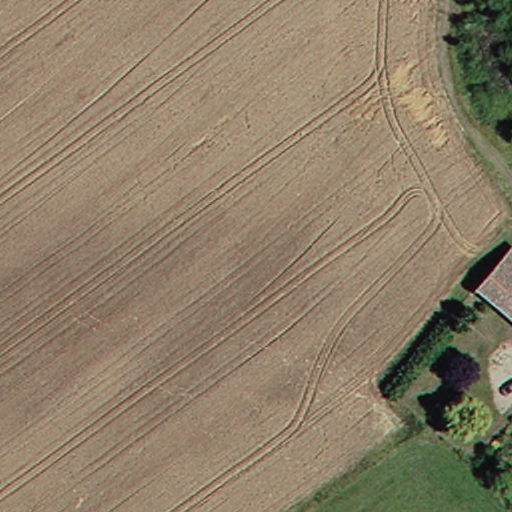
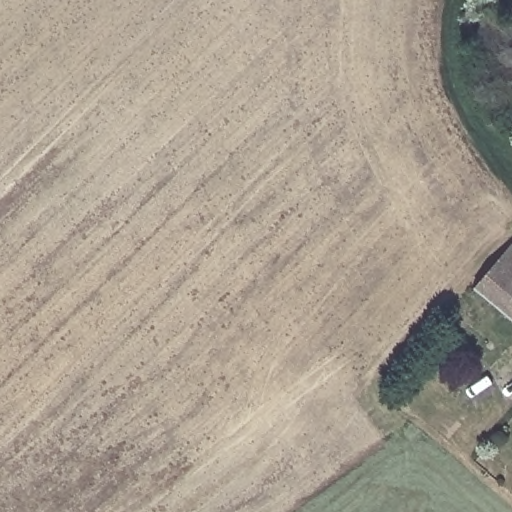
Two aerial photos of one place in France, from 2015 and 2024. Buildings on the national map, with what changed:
unchanged [(478,283),(512,245),(512,312),(478,283)]

